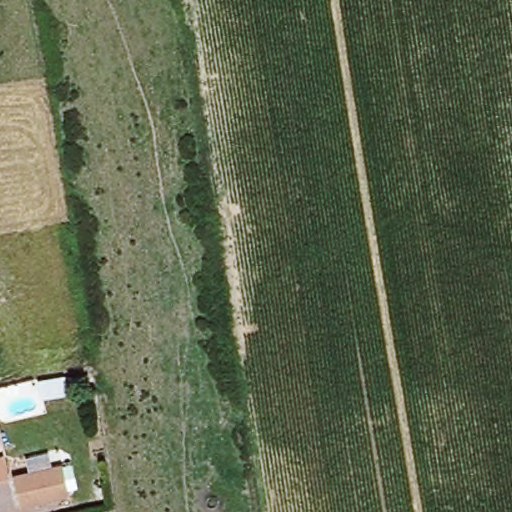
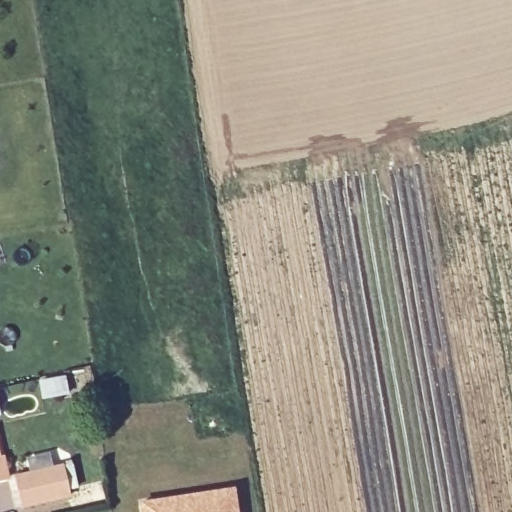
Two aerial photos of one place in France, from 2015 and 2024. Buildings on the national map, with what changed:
unchanged [(10,484),(0,487),(0,463),(5,462),(10,484)]
unchanged [(15,481),(61,471),(68,500),(21,510),(15,481)]
new [(236,486),(239,512),(141,512),(139,500),(236,486)]

